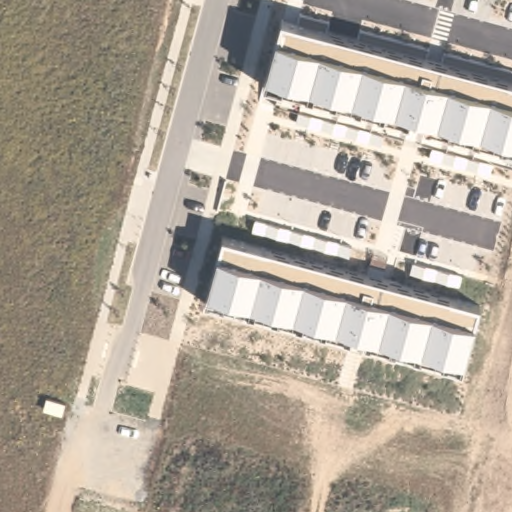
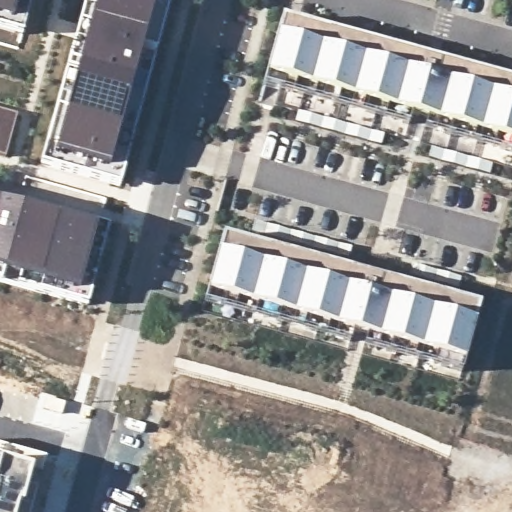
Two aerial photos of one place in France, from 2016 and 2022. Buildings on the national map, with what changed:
new [(21,36),(0,30),(0,0),(31,0),(23,26),(21,36)]
new [(96,0),(51,167),(41,165),(86,0),(96,0)]
new [(120,186),(51,167),(96,0),(170,0),(166,16),(120,186)]
unchanged [(512,80),(512,150),(262,85),(266,75),(276,36),(280,16),(512,80)]
new [(23,205),(97,225),(108,228),(102,250),(90,295),(0,271),(0,204),(21,210),(23,205)]
unchanged [(479,302),(474,322),(465,359),(460,370),(204,301),(209,289),(218,253),(223,232),(479,302)]
new [(87,305),(0,280),(0,271),(90,295),(87,305)]
new [(29,512),(0,512),(0,449),(43,461),(29,512)]

